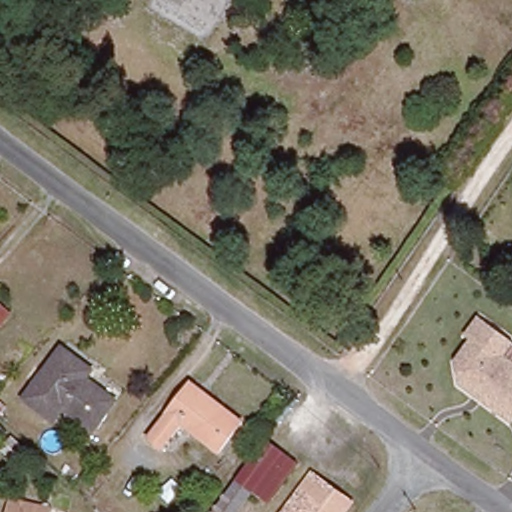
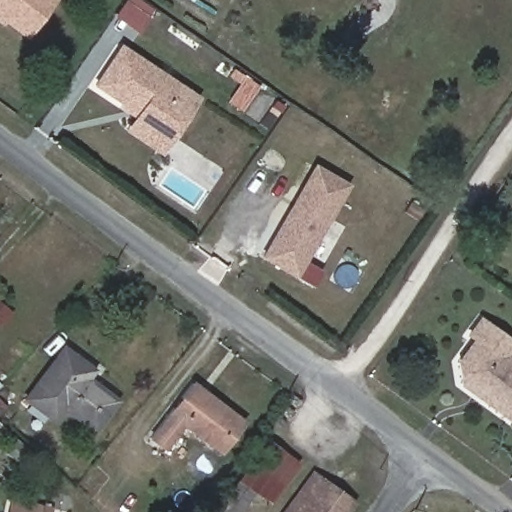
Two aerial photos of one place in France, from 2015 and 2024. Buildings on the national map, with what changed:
new [(0,25),(2,22),(0,21),(0,0),(56,0),(26,40),(0,25)]
new [(126,0),(143,0),(155,9),(137,34),(113,16),(126,0)]
new [(199,96),(160,156),(123,132),(132,117),(119,110),(122,105),(93,86),(120,44),(199,96)]
new [(350,184),(294,279),(259,258),(313,164),(350,184)]
unchanged [(14,313),(0,327),(0,300),(14,313)]
unchanged [(512,343),(512,344),(502,358),(512,365),(512,421),(481,400),(484,394),(463,379),(462,364),(477,340),(469,333),(479,319),(512,343)]
unchanged [(59,420),(29,398),(67,348),(96,369),(85,385),(114,407),(97,430),(68,408),(59,420)]
unchanged [(223,454),(186,426),(167,450),(153,440),(196,384),(246,424),(223,454)]
unchanged [(26,452),(17,463),(2,449),(12,439),(26,452)]
unchanged [(254,493),(240,512),(215,512),(264,445),(297,469),(271,505),(254,493)]
unchanged [(310,479),(347,506),(343,512),(286,512),(310,479)]
unchanged [(11,498),(51,507),(50,512),(8,512),(11,498)]

